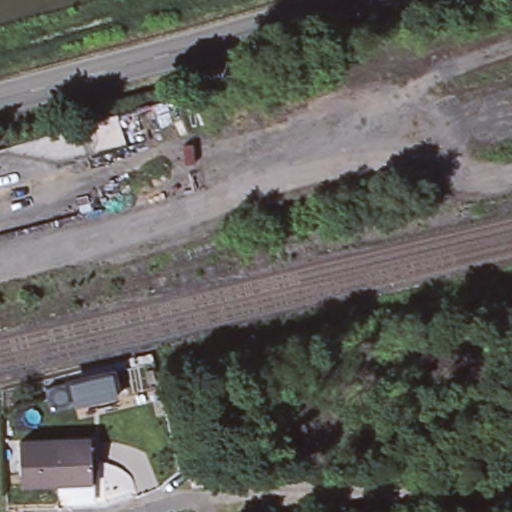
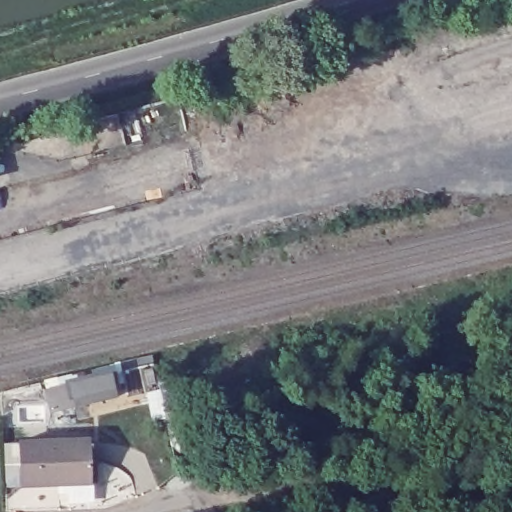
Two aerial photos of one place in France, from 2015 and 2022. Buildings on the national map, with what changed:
unchanged [(100,373),(106,371),(108,377),(112,376),(115,393),(105,395),(64,404),(40,410),(35,387),(59,382),(100,373)]
unchanged [(22,484),(20,441),(89,438),(91,481),(69,482),(59,482),(22,484)]

